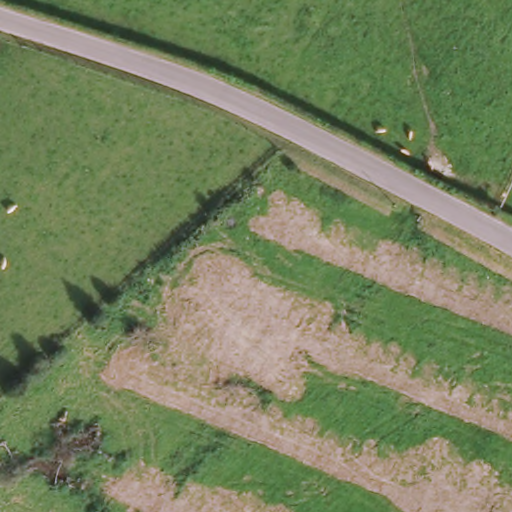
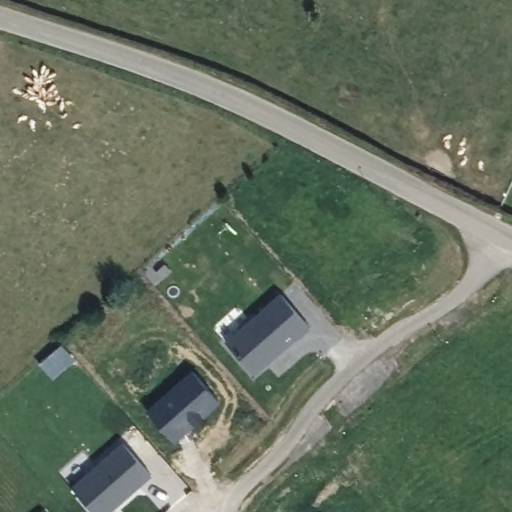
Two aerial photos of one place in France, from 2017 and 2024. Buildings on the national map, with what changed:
new [(255,375),(226,341),(280,293),(309,327),(255,375)]
new [(191,370),(220,402),(175,442),(146,410),(191,370)]
new [(110,512),(93,512),(71,485),(123,442),(152,475),(110,512)]

